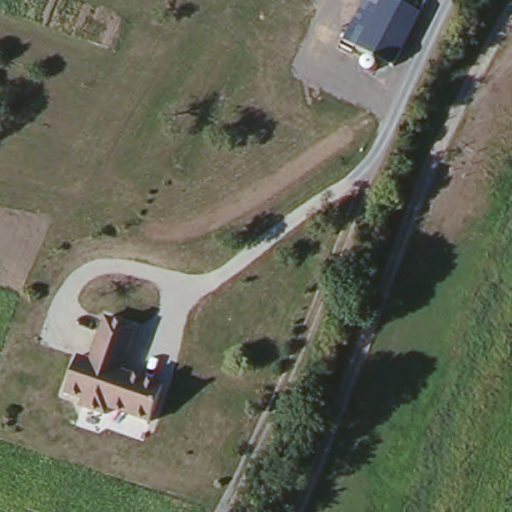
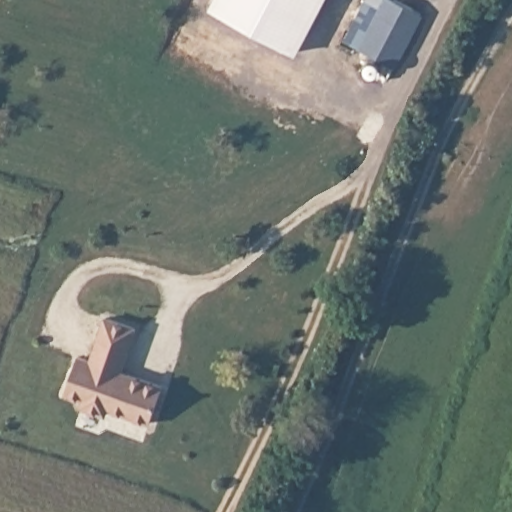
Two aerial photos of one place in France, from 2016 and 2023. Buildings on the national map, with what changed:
new [(209,6),(212,0),(322,0),(297,55),(209,6)]
unchanged [(393,60),(344,38),(362,0),(403,0),(419,6),(393,60)]
unchanged [(135,320),(125,369),(165,381),(155,425),(66,398),(74,350),(89,354),(101,311),(135,320)]

